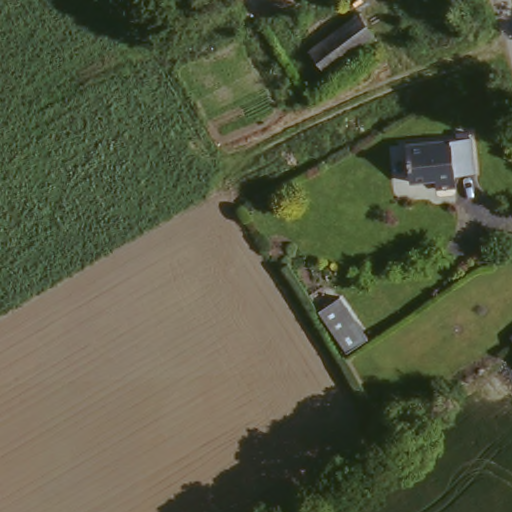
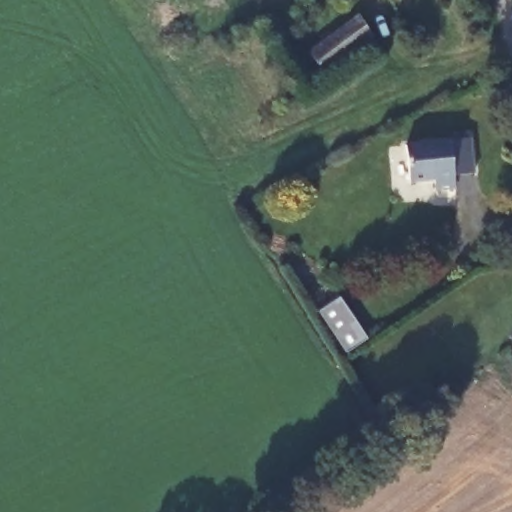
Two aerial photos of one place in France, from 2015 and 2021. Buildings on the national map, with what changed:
unchanged [(329,34),(340,25),(351,17),(355,14),(371,33),(322,69),(308,50),(321,40),(329,34)]
unchanged [(409,182),(405,144),(471,138),(471,147),(473,168),(454,169),(456,187),(437,189),(436,180),(417,182),(409,182)]
unchanged [(368,338),(343,354),(322,323),(316,314),(339,298),(348,310),(368,338)]
unchanged [(512,333),(512,341),(508,336),(512,333)]

